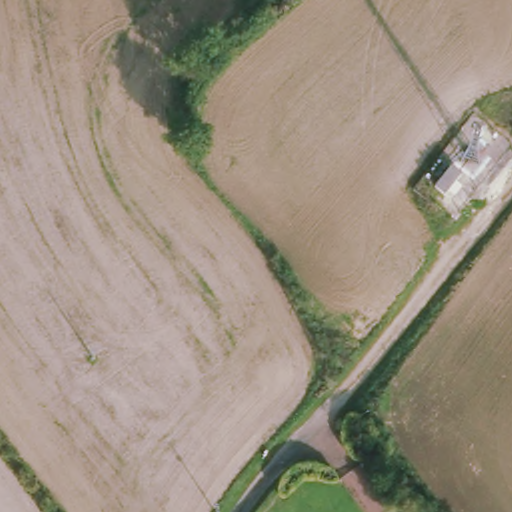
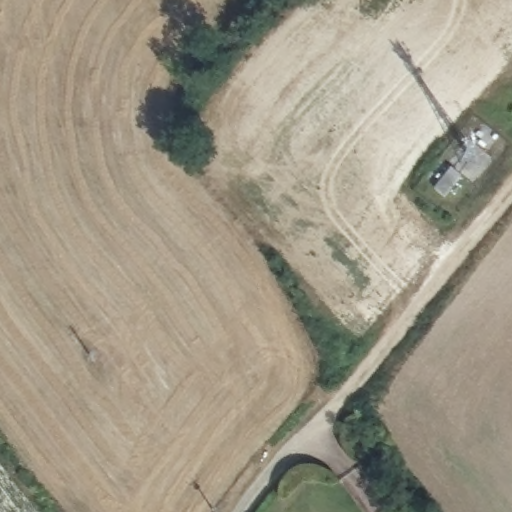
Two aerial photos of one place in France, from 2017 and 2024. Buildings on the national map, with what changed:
unchanged [(429,194),(450,170),(462,180),(444,204),(429,194)]

